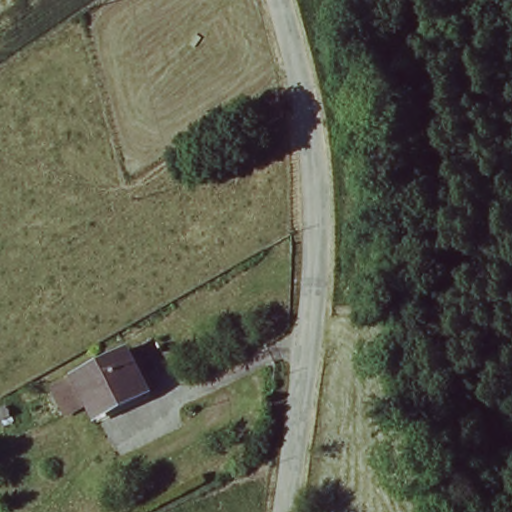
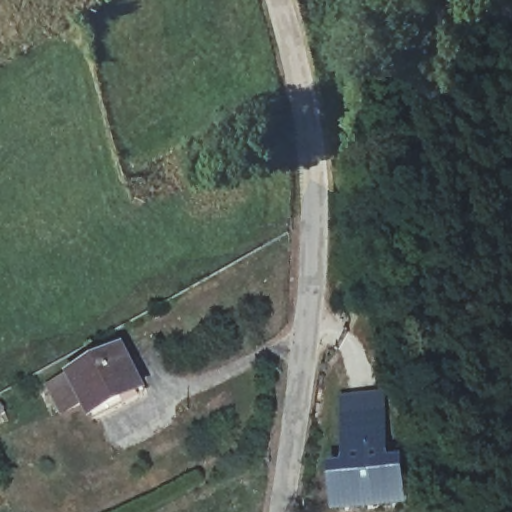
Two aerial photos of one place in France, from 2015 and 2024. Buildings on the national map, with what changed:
unchanged [(149,390),(95,419),(84,404),(63,413),(51,389),(126,341),(149,390)]
new [(346,464),(341,398),(389,392),(396,459),(410,458),(414,512),(334,512),(331,466),(346,464)]

